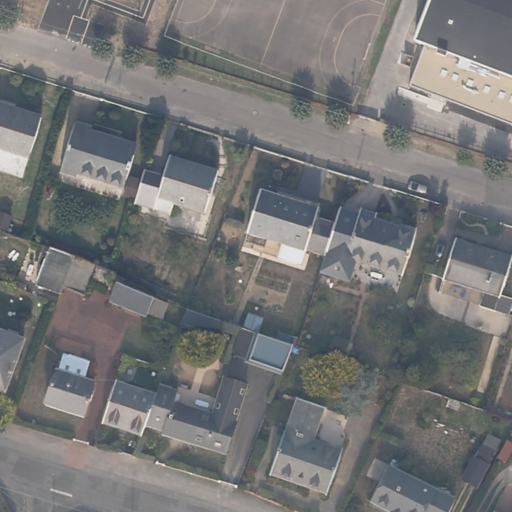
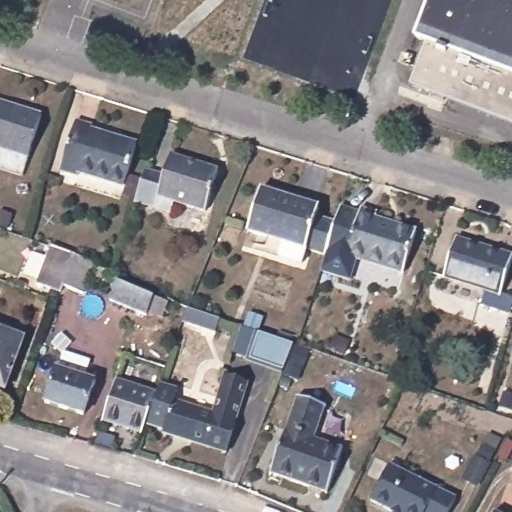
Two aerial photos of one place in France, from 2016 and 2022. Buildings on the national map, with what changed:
unchanged [(409,87),(426,41),(416,38),(429,0),(512,0),(512,125),(409,87)]
unchanged [(21,169),(0,163),(0,99),(39,110),(21,169)]
unchanged [(93,130),(140,144),(128,185),(81,171),(79,176),(65,171),(80,121),(95,126),(93,130)]
unchanged [(169,153),(220,168),(205,216),(176,206),(155,198),(163,174),(169,153)]
unchanged [(176,206),(172,216),(136,204),(146,169),(163,174),(155,198),(176,206)]
unchanged [(330,250),(328,255),(309,249),(304,264),(265,252),(269,239),(250,233),(263,192),(321,210),(318,221),(337,227),(330,250)]
unchanged [(362,208),(379,214),(378,218),(418,230),(405,271),(348,253),(362,208)]
unchanged [(503,293),(446,276),(458,238),(512,255),(512,266),(503,293)]
unchanged [(85,293),(65,285),(63,290),(39,281),(54,244),(77,252),(76,254),(96,261),(85,293)]
unchanged [(166,320),(151,313),(149,316),(113,300),(121,278),(157,296),(174,303),(166,320)]
unchanged [(4,391),(0,390),(0,332),(22,340),(4,391)]
unchanged [(295,344),(284,370),(251,359),(261,332),(295,344)]
unchanged [(59,361),(85,370),(81,385),(91,389),(80,424),(41,412),(52,376),(55,376),(59,361)]
unchanged [(156,386),(174,392),(170,402),(210,414),(222,376),(245,383),(224,452),(161,433),(161,430),(142,425),(154,394),(156,386)]
unchanged [(154,394),(142,425),(139,433),(105,422),(98,420),(111,380),(119,383),(154,394)]
unchanged [(296,395),(324,406),(312,439),(341,449),(326,491),(267,473),(281,429),(284,429),(296,395)]
unchanged [(393,510),(373,500),(391,464),(456,496),(448,512),(400,512),(394,509),(393,510)]
unchanged [(490,512),(484,512),(486,510),(490,512)]

